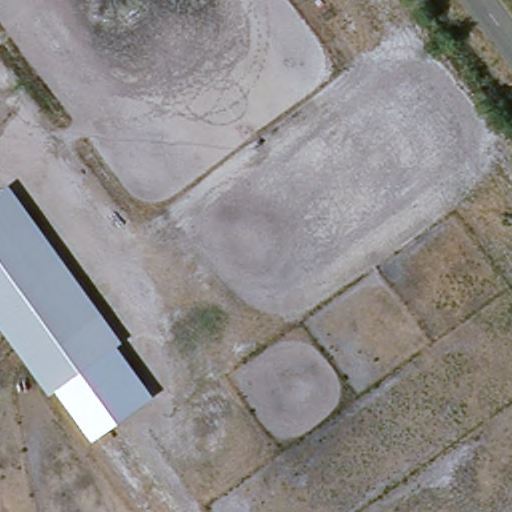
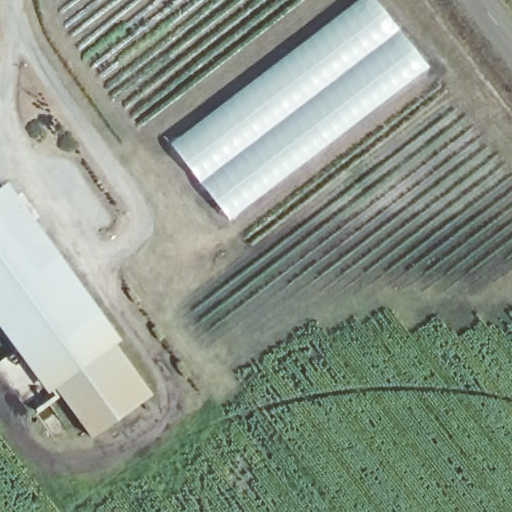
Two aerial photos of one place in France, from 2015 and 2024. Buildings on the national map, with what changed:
new [(357,0),(375,0),(427,66),(229,219),(171,142),(357,0)]
unchanged [(122,343),(117,347),(152,397),(92,440),(56,390),(49,395),(0,326),(0,191),(9,185),(122,343)]

